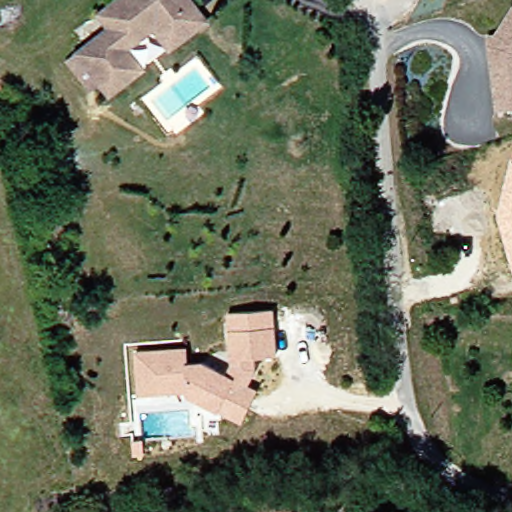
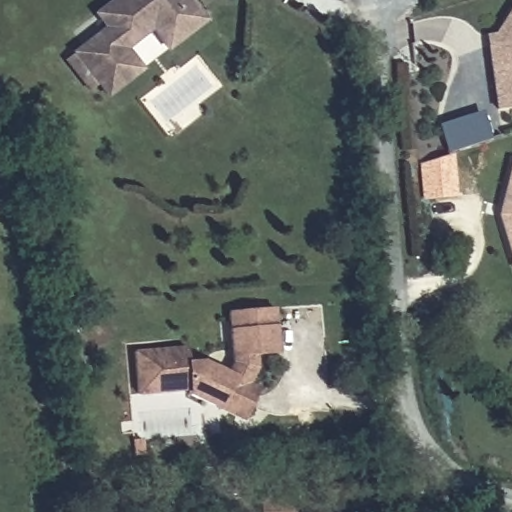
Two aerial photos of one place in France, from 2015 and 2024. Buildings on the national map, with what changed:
unchanged [(107,86),(104,82),(95,89),(71,59),(111,26),(110,24),(100,13),(117,0),(195,0),(198,4),(209,18),(172,47),(161,33),(156,27),(130,47),(140,59),(146,67),(113,94),(107,86)]
unchanged [(500,24),(512,10),(512,101),(495,103),(490,36),(498,34),(503,27),(500,24)]
new [(480,111),(488,139),(446,152),(438,124),(480,111)]
new [(418,164),(452,154),(456,197),(422,200),(418,164)]
unchanged [(497,215),(511,160),(512,160),(512,264),(497,215)]
unchanged [(242,421),(220,409),(190,394),(190,390),(140,393),(137,350),(187,347),(188,358),(204,357),(228,369),(234,358),(232,330),(231,313),(276,310),(277,328),(279,355),(256,356),(257,369),(250,384),(259,389),(242,421)]
unchanged [(291,512),(257,512),(257,499),(291,499),(291,512)]

